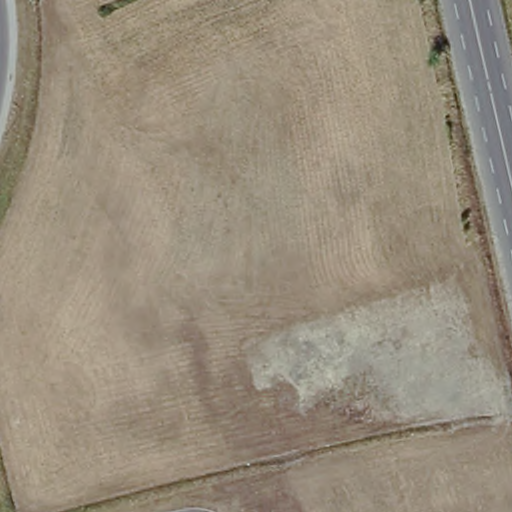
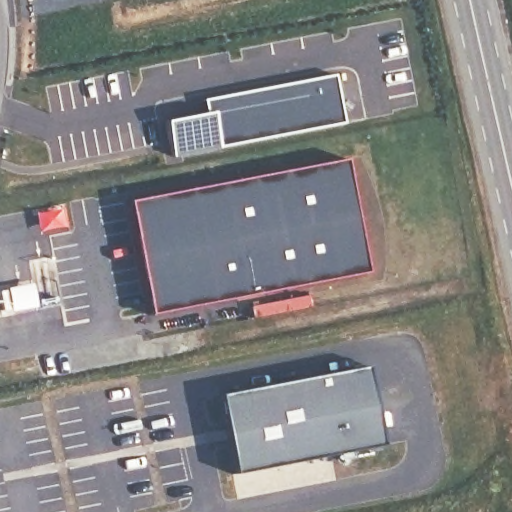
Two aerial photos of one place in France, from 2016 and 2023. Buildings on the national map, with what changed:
new [(199,112),(197,97),(323,75),(332,122),(166,155),(160,122),(199,112)]
new [(365,271),(150,315),(128,201),(344,161),(365,271)]
new [(5,293),(10,312),(2,314),(0,302),(0,294),(5,293)]
new [(364,375),(378,452),(229,478),(214,403),(364,375)]

